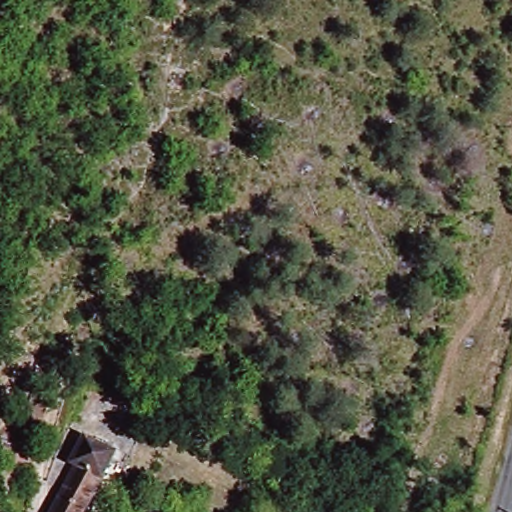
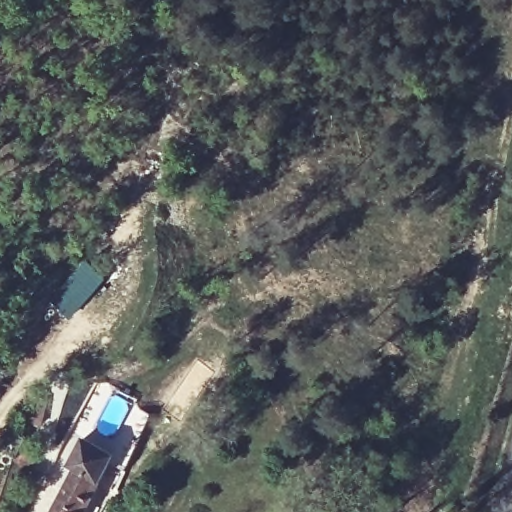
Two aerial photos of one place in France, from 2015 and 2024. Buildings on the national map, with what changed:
new [(87,259),(109,278),(72,320),(50,301),(87,259)]
unchanged [(0,438),(0,413),(37,432),(28,450),(0,438)]
unchanged [(112,451),(90,512),(59,512),(75,470),(68,467),(80,439),(112,451)]

